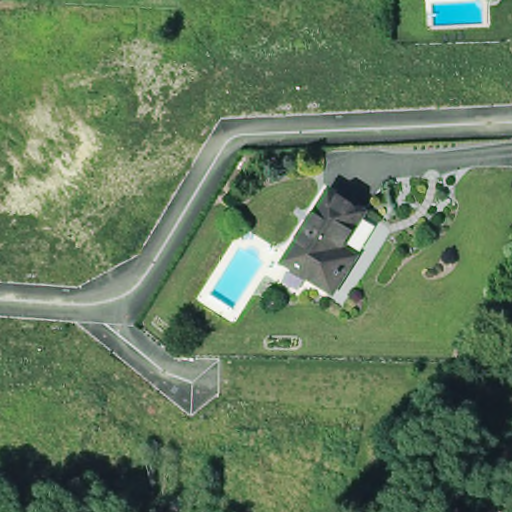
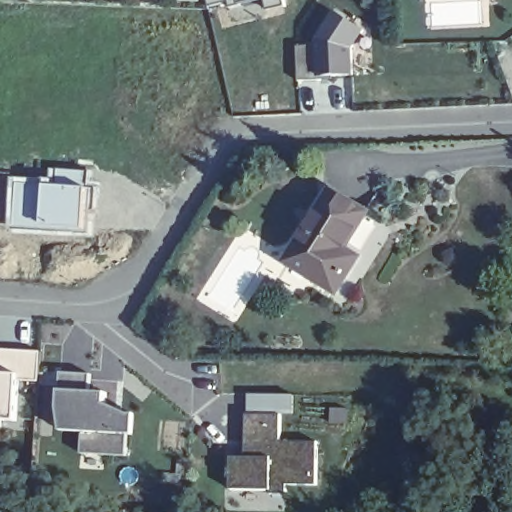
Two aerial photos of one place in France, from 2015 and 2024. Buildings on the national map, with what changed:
new [(228,3),(209,6),(207,0),(261,0),(229,7),(228,3)]
new [(267,10),(265,0),(285,0),(286,6),(267,10)]
new [(349,0),(354,0),(352,2),(349,0)]
new [(373,28),(362,46),(362,76),(304,76),(303,50),(322,49),(346,11),(373,28)]
new [(11,177),(50,178),(52,169),(92,172),(91,185),(101,186),(94,237),(11,231),(11,177)]
unchanged [(287,264),(332,195),(366,216),(344,251),(357,260),(336,294),(287,264)]
new [(18,381),(16,421),(0,420),(0,350),(41,352),(39,382),(18,381)]
new [(134,435),(128,435),(127,457),(81,453),(82,432),(61,431),(62,407),(57,407),(60,372),(91,374),(90,392),(106,392),(106,403),(129,414),(136,414),(134,435)]
new [(232,469),(232,457),(246,458),(247,443),(247,415),(282,415),(282,442),(319,443),(317,486),(287,486),(287,495),(271,495),(271,491),(232,490),(232,478),(229,478),(230,469),(232,469)]

